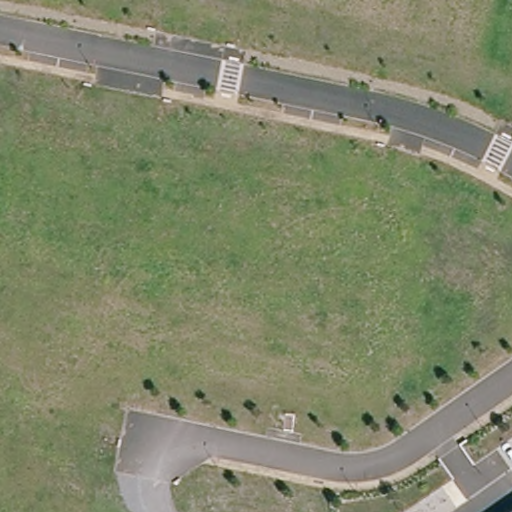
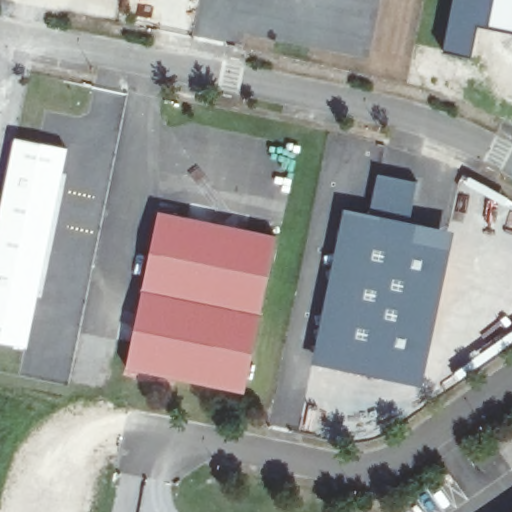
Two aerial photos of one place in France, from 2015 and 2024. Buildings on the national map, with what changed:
new [(471,57),(444,51),(454,0),(512,0),(512,31),(478,25),(471,57)]
new [(67,150),(28,346),(0,341),(0,208),(14,137),(67,150)]
new [(368,227),(378,173),(419,182),(407,236),(368,227)]
new [(370,215),(368,227),(407,236),(410,222),(453,230),(422,386),(312,365),(343,209),(370,215)]
new [(149,216),(269,241),(236,396),(117,371),(149,216)]

